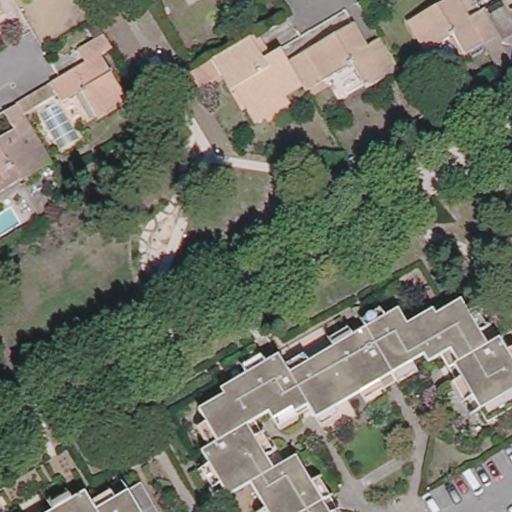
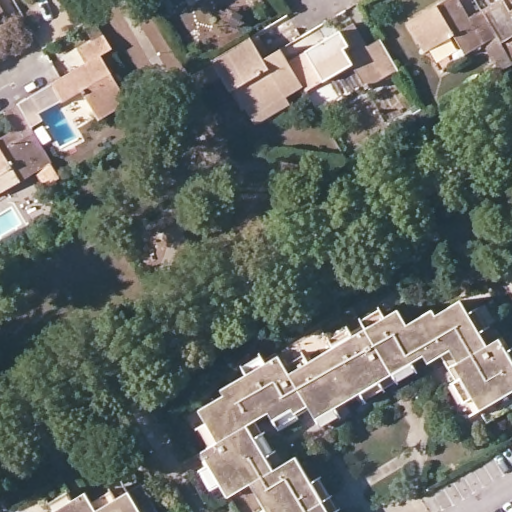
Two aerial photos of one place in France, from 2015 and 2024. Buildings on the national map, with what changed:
unchanged [(440,0),(461,0),(464,5),(469,15),(481,7),(493,0),(503,0),(508,7),(512,5),(512,31),(499,39),(504,46),(472,64),(453,32),(426,47),(409,19),(440,0)]
unchanged [(0,9),(0,5),(2,8),(0,9)]
unchanged [(289,57),(353,21),(356,27),(361,35),(373,27),(397,68),(367,86),(352,60),(306,87),(303,81),(289,57)]
unchanged [(267,113),(256,120),(245,103),(234,85),(230,87),(221,71),(198,84),(189,70),(212,56),(250,33),(258,28),(270,51),(281,45),(289,57),(303,81),(285,91),(290,100),(267,113)]
unchanged [(109,45),(117,57),(103,65),(132,111),(102,130),(85,101),(65,112),(62,106),(28,127),(21,114),(63,88),(80,78),(89,74),(82,61),(109,45)]
unchanged [(18,139),(8,122),(21,114),(28,127),(57,172),(23,192),(15,180),(0,189),(0,150),(18,139)]
unchanged [(255,508),(264,503),(248,477),(225,491),(218,478),(211,483),(198,464),(206,460),(199,447),(206,442),(194,423),(203,418),(195,406),(220,391),(216,384),(242,369),(238,361),(256,351),(260,358),(274,351),(281,362),(301,351),(305,358),(330,344),(326,337),(344,326),(349,333),(361,326),(356,318),(376,307),(380,315),(393,307),(403,322),(428,308),(431,313),(456,298),(464,311),(472,306),(483,327),(476,331),(482,342),(495,334),(503,347),(511,343),(512,344),(512,402),(484,418),(469,393),(460,397),(449,379),(458,374),(451,362),(448,362),(445,361),(442,357),(439,351),(427,358),(422,351),(410,357),(414,366),(395,377),(393,376),(380,383),(381,386),(366,395),(361,387),(334,402),(339,410),(322,421),(316,413),(307,399),(295,407),(296,410),(278,421),(273,412),(268,405),(252,415),(259,428),(261,427),(272,446),(264,450),(272,462),(295,449),(311,476),(320,471),(330,488),(328,490),(336,504),(339,502),(345,512),(258,512),(255,508)]
unchanged [(57,506),(52,498),(72,487),(77,495),(89,488),(96,498),(116,487),(120,494),(147,478),(167,512),(47,512),(57,506)]

